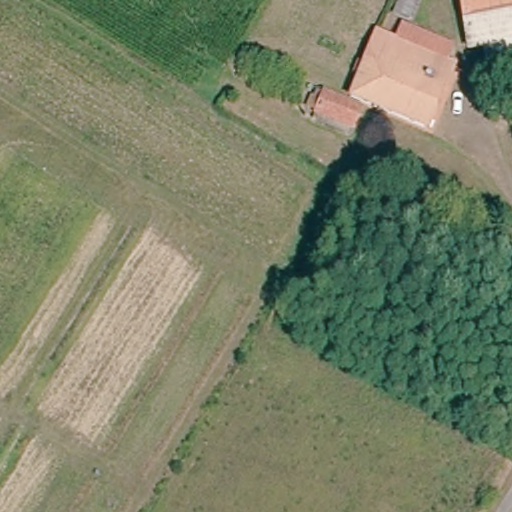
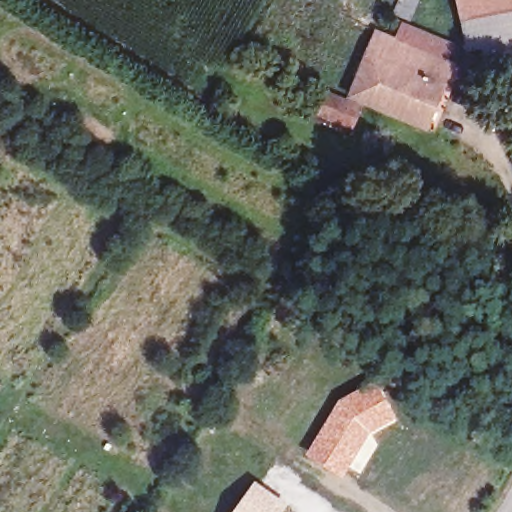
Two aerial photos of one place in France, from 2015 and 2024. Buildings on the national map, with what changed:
unchanged [(408,0),(435,0),(420,24),(400,12),(408,0)]
unchanged [(472,44),(466,0),(512,0),(512,39),(488,42),(472,44)]
unchanged [(384,34),(402,44),(410,29),(455,53),(450,64),(459,68),(426,130),(351,97),(384,34)]
unchanged [(488,42),(512,39),(512,65),(491,68),(488,42)]
unchanged [(315,112),(323,94),(347,105),(366,114),(358,132),(339,123),(315,112)]
new [(338,398),(378,378),(397,417),(373,431),(370,436),(371,438),(342,478),(303,454),(338,398)]
new [(285,503),(279,511),(280,512),(235,512),(242,502),(256,482),(285,503)]

